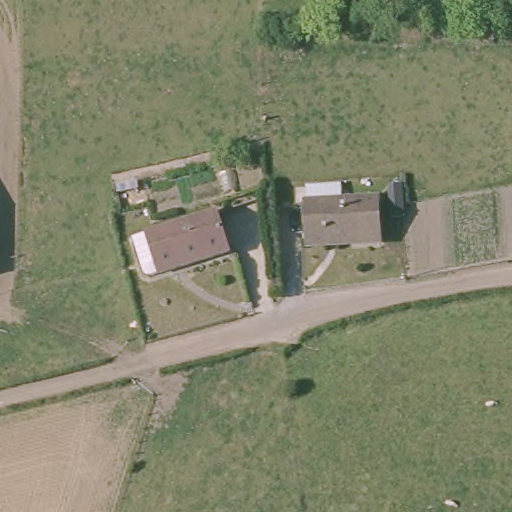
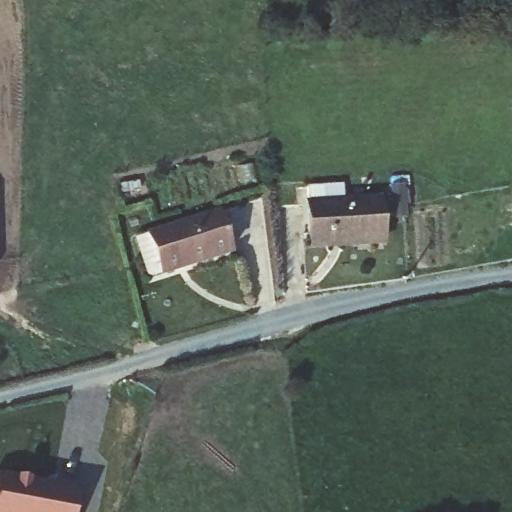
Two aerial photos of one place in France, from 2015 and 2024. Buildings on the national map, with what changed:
unchanged [(308,204),(307,188),(327,186),(343,185),(344,201),(380,199),(382,243),(359,245),(310,249),(310,242),(308,204)]
unchanged [(240,214),(242,256),(144,261),(139,257),(137,220),(240,214)]
new [(79,491),(74,512),(0,512),(0,475),(79,491)]

